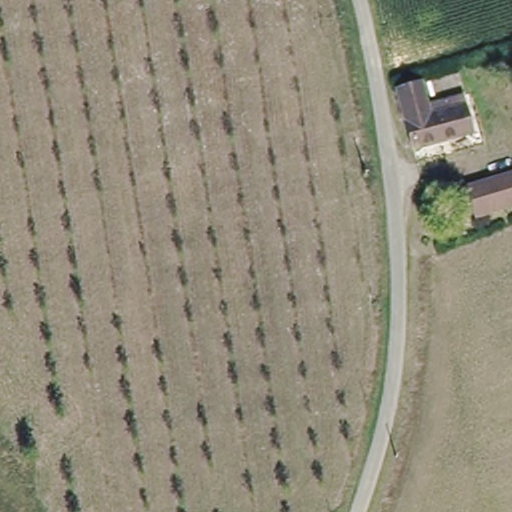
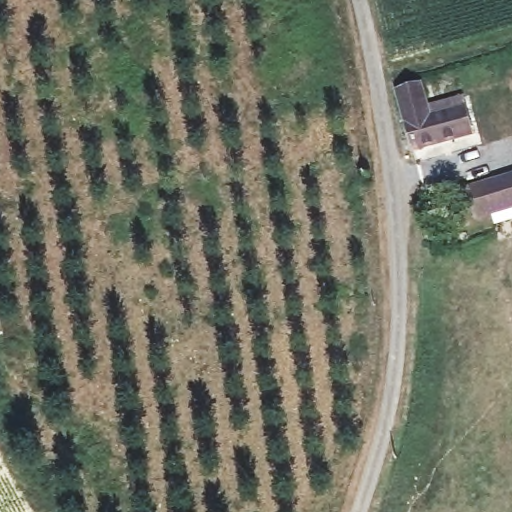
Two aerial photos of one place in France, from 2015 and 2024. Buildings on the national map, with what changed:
unchanged [(430,79),(437,101),(440,100),(451,96),(466,92),(470,101),(477,133),(406,151),(386,87),(404,83),(430,79)]
unchanged [(474,207),(468,186),(493,179),(512,175),(512,208),(500,210),(478,217),(474,207)]

